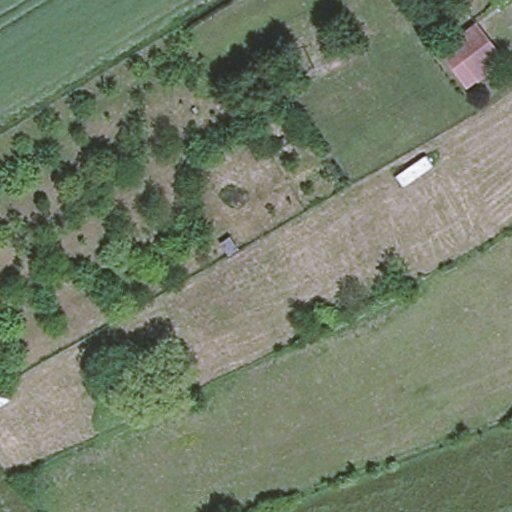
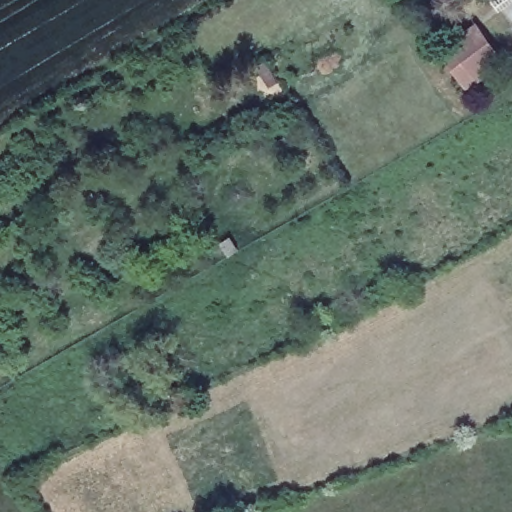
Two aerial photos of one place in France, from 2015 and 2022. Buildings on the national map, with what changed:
unchanged [(447,48),(444,42),(475,21),(505,65),(465,91),(440,54),(447,48)]
unchanged [(230,237),(239,249),(230,255),(222,242),(230,237)]

